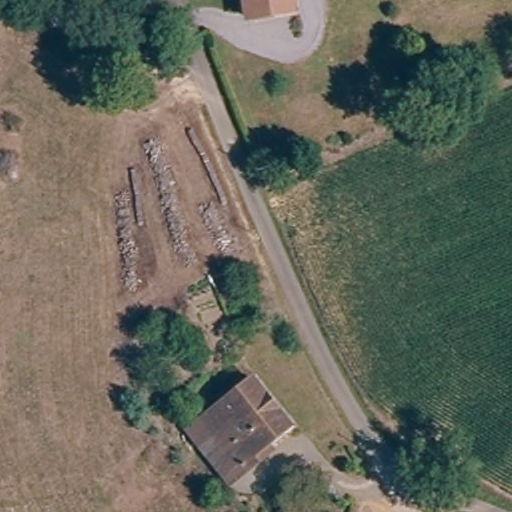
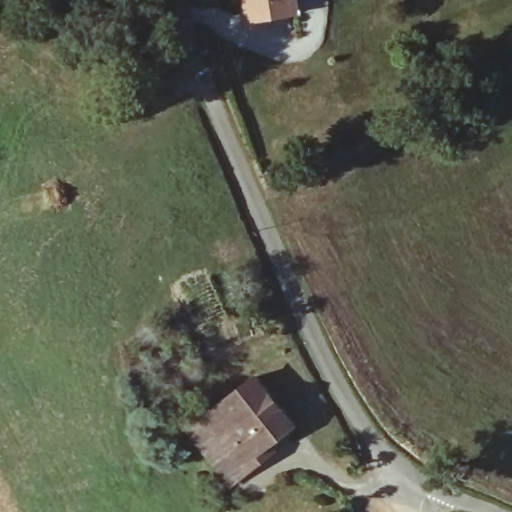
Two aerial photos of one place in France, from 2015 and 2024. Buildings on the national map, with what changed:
unchanged [(253,20),(249,0),(297,0),(299,10),(253,20)]
unchanged [(258,443),(266,452),(261,455),(247,467),(236,454),(204,415),(254,374),(289,417),(258,443)]

